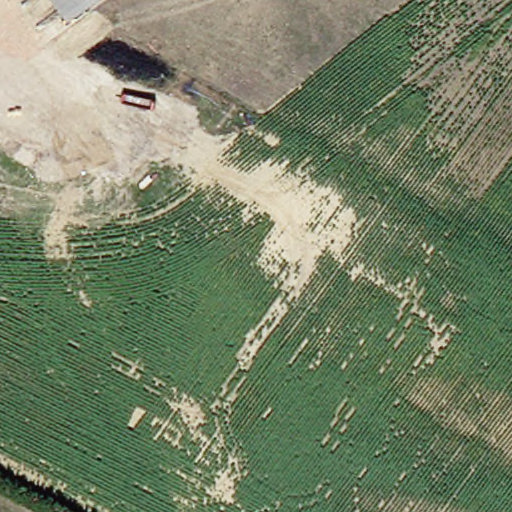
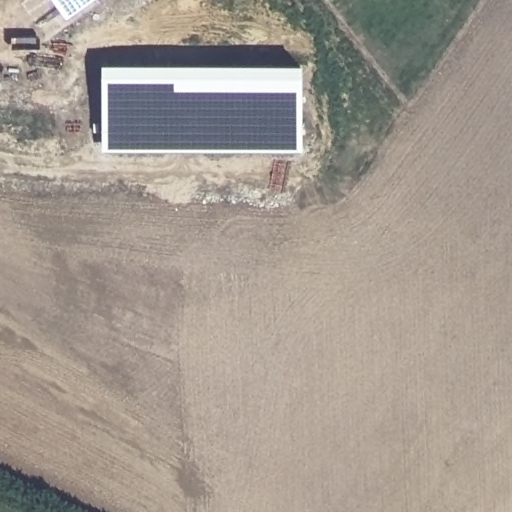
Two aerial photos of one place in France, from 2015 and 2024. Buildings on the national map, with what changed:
unchanged [(52,10),(46,0),(69,0),(52,10)]
new [(102,65),(302,65),(302,151),(102,151),(102,65)]

